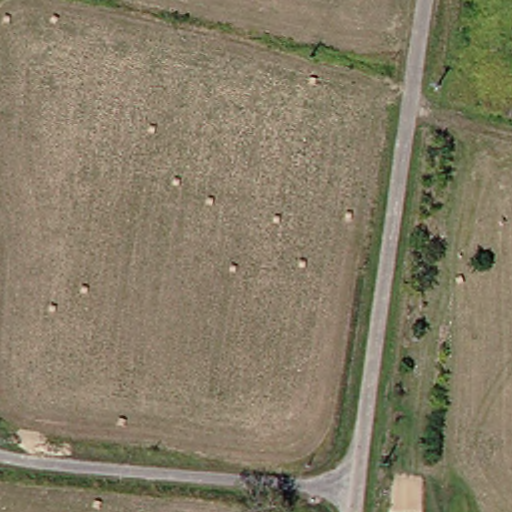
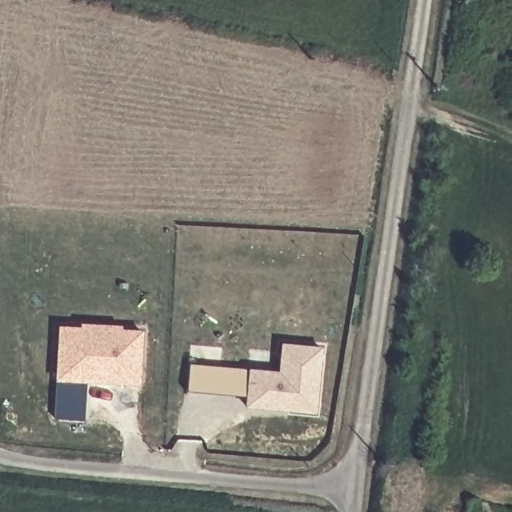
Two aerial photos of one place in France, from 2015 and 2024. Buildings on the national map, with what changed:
new [(142,332),(139,386),(56,381),(61,328),(142,332)]
new [(247,397),(187,391),(190,363),(278,371),(282,344),(322,347),(316,414),(246,407),(247,397)]

